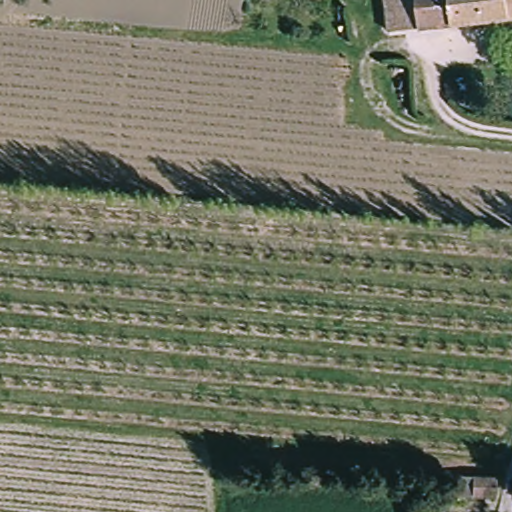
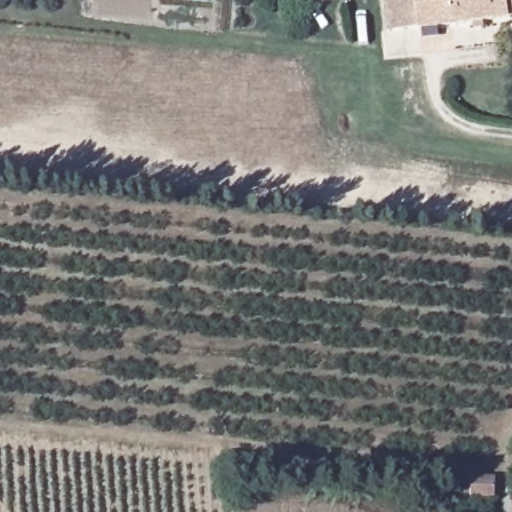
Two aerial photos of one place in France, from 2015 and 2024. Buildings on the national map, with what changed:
unchanged [(405,6),(382,7),(381,0),(512,0),(512,20),(408,33),(405,6)]
unchanged [(483,495),(458,494),(459,476),(485,477),(483,495)]
unchanged [(442,512),(408,512),(408,503),(442,505),(442,512)]

